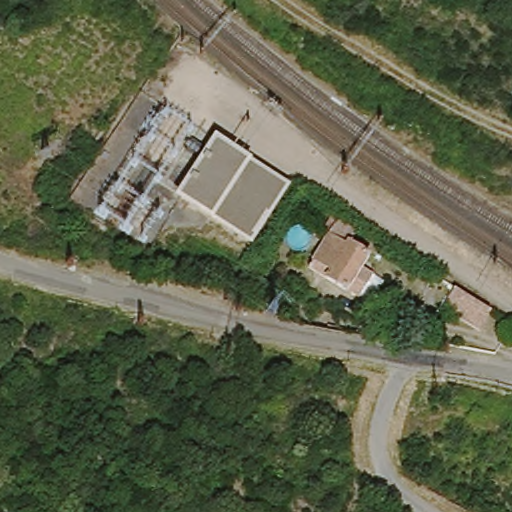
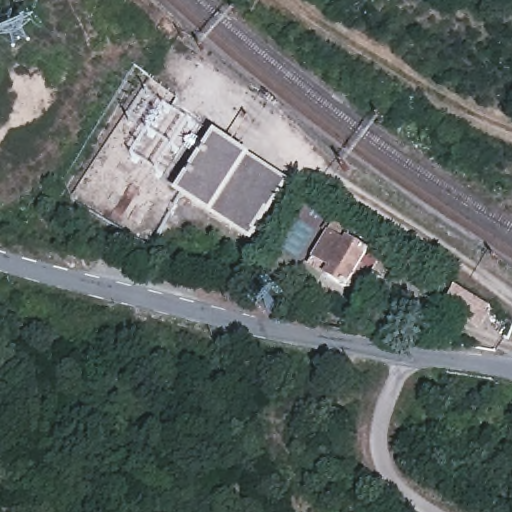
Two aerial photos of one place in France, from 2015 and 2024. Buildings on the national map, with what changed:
unchanged [(289,181),(253,240),(180,195),(215,137),(289,181)]
unchanged [(313,271),(342,223),(362,235),(356,245),(373,255),(366,268),(377,275),(365,294),(354,287),(350,292),(333,282),(313,271)]
unchanged [(485,330),(452,311),(462,290),(497,309),(485,330)]

